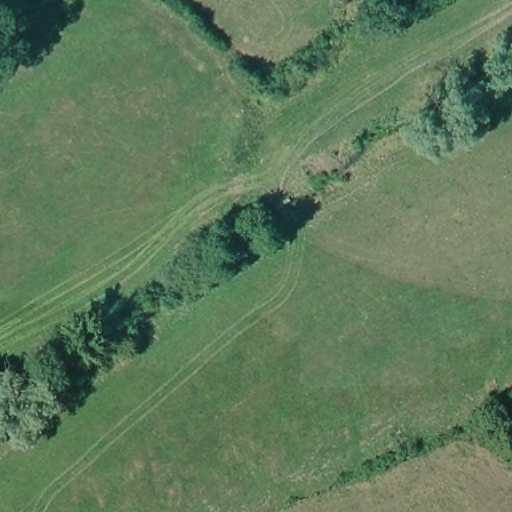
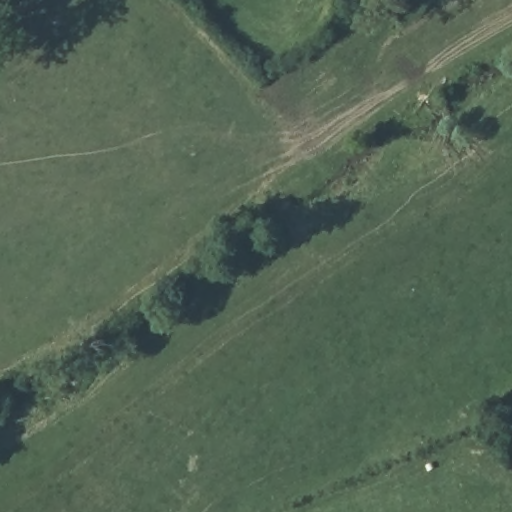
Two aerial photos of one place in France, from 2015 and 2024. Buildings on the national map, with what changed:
[]

